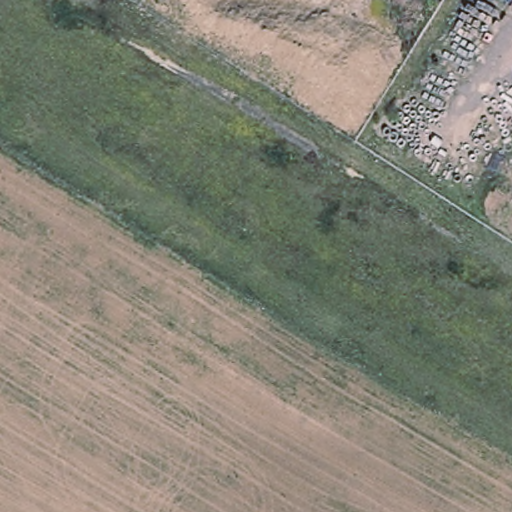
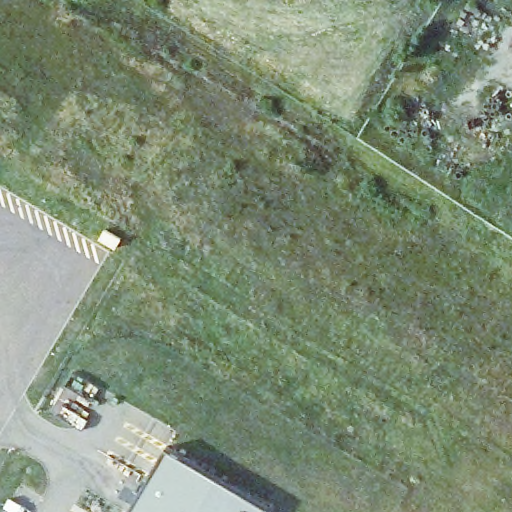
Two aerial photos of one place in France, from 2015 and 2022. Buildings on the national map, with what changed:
new [(120,495),(127,483),(141,491),(167,447),(271,508),(269,512),(129,512),(134,503),(120,495)]

